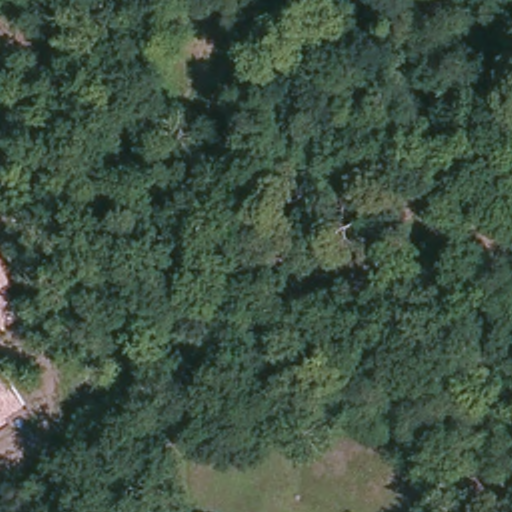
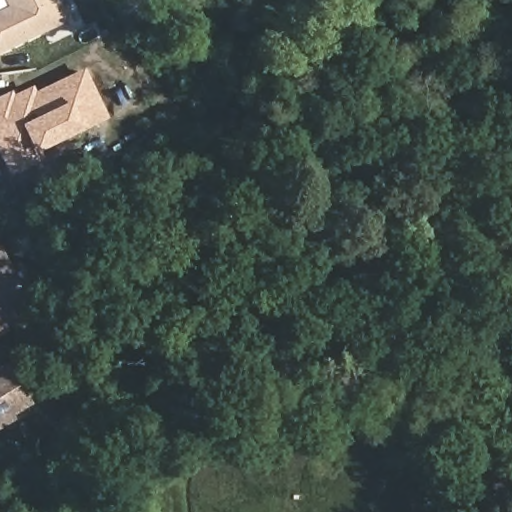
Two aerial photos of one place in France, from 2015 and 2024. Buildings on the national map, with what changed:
new [(5,0),(49,0),(58,19),(0,47),(0,11),(8,7),(5,0)]
new [(7,173),(0,159),(0,98),(5,95),(7,99),(26,90),(30,96),(78,73),(91,101),(100,117),(76,129),(31,150),(36,159),(7,173)]
unchanged [(19,284),(10,288),(26,318),(0,330),(0,247),(1,246),(19,284)]
unchanged [(19,422),(0,433),(0,371),(10,365),(32,404),(15,415),(19,422)]

